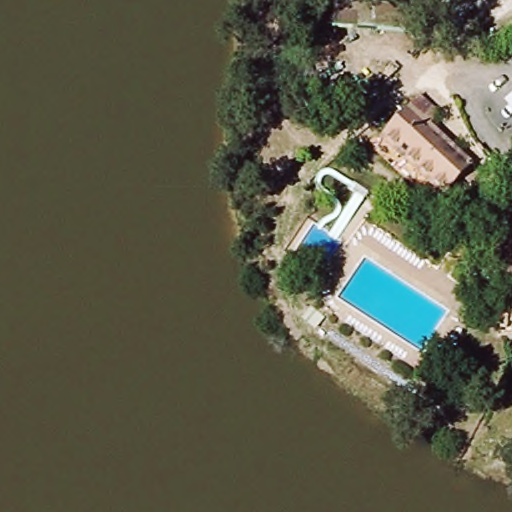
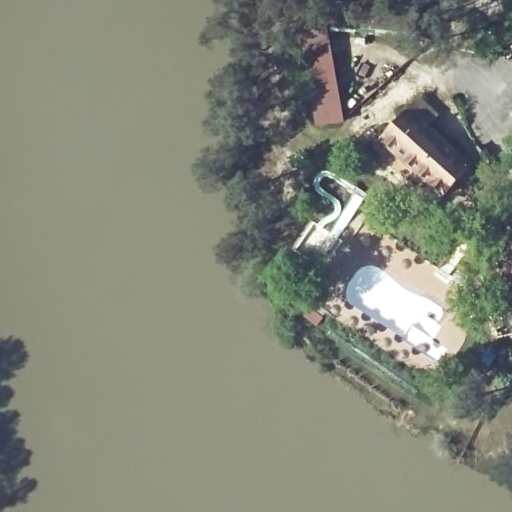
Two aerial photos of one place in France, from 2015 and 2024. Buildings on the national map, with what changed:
new [(345,121),(314,127),(298,30),(328,25),(345,121)]
unchanged [(463,189),(452,181),(435,197),(374,141),(404,111),(414,101),(435,119),(425,130),(466,166),(477,175),(463,189)]
unchanged [(481,253),(505,247),(501,227),(512,224),(512,319),(500,322),(481,253)]

